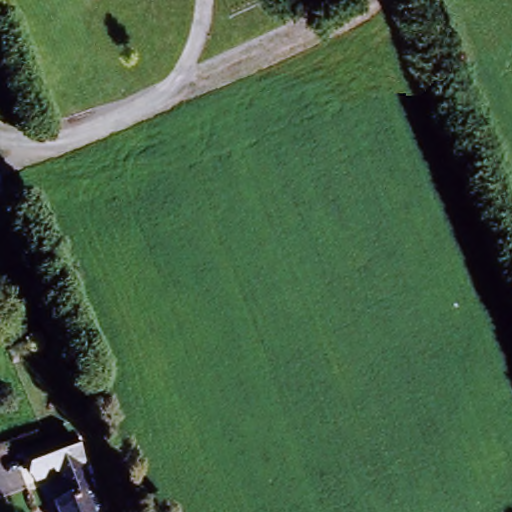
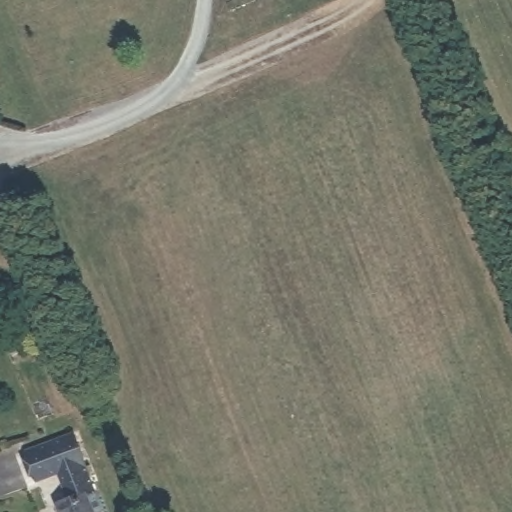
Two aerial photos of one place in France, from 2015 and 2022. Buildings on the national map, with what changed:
unchanged [(60,512),(56,498),(69,494),(59,465),(37,472),(28,444),(75,428),(94,486),(85,488),(93,512),(60,512)]

